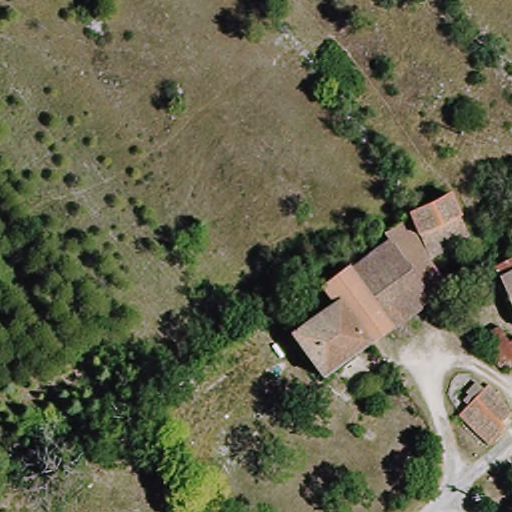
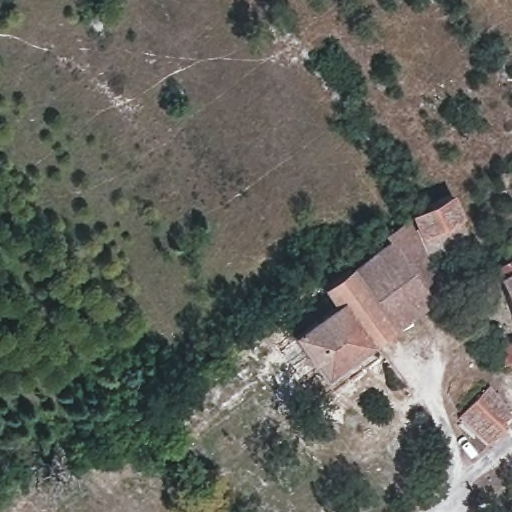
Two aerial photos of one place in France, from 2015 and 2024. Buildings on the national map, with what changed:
unchanged [(457,210),(467,234),(440,251),(447,271),(453,281),(364,346),(321,293),(315,282),(344,260),(350,268),(385,243),(379,234),(410,211),(447,189),(457,210)]
unchanged [(507,278),(512,277),(512,293),(507,278)]
unchanged [(364,346),(323,376),(291,335),(298,328),(289,315),(321,293),(364,346)]
unchanged [(502,334),(510,351),(512,350),(512,366),(497,372),(485,342),(502,334)]
unchanged [(459,413),(489,383),(505,412),(494,431),(484,440),(459,413)]

